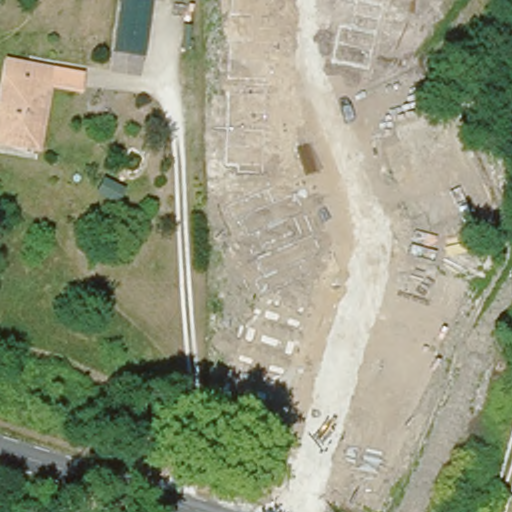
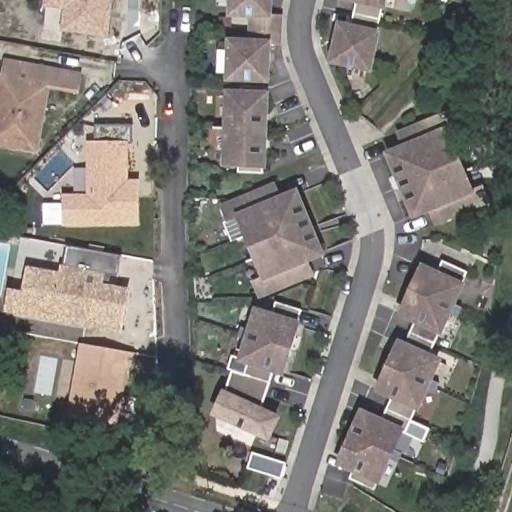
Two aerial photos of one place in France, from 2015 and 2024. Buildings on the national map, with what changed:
new [(66,10),(43,7),(44,0),(112,0),(108,39),(64,33),(66,10)]
demolished [(139,55),(136,73),(107,68),(117,0),(151,0),(143,56),(139,55)]
new [(273,45),(271,84),(226,81),(228,38),(249,39),(250,18),(229,18),(230,0),(274,0),(273,13),(284,14),(283,45),(273,45)]
new [(329,65),(339,21),(354,24),(358,4),(339,0),(388,0),(372,74),(329,65)]
unchanged [(78,86),(48,81),(36,145),(0,138),(0,91),(7,53),(81,66),(78,86)]
new [(267,169),(223,168),(225,89),(270,91),(267,169)]
new [(436,226),(431,213),(414,220),(385,152),(402,145),(395,131),(452,109),(460,129),(453,131),(474,189),(484,184),(491,203),(436,226)]
new [(95,126),(130,126),(130,178),(140,178),(140,226),(44,227),(44,206),(61,205),(61,195),(87,195),(87,141),(95,141),(95,126)]
new [(260,299),(253,282),(262,278),(236,218),(228,222),(220,206),(275,182),(282,195),(298,188),(327,256),(309,264),(315,276),(260,299)]
new [(67,247),(121,256),(117,277),(106,275),(104,284),(133,288),(124,335),(5,313),(9,290),(21,290),(26,266),(59,271),(60,264),(64,266),(67,247)]
new [(464,283),(466,284),(433,354),(444,359),(409,430),(406,429),(379,485),(376,491),(351,480),(354,473),(336,465),(363,408),(383,417),(391,399),(376,392),(401,339),(408,342),(416,324),(398,316),(424,263),(438,270),(443,260),(469,272),(464,283)]
new [(285,376),(277,373),(265,408),(283,415),(260,464),(207,439),(227,390),(234,370),(245,374),(248,366),(239,363),(255,307),(274,313),(277,303),(304,311),(302,322),(285,376)]
new [(80,344),(135,354),(131,373),(126,372),(117,427),(66,418),(80,344)]

